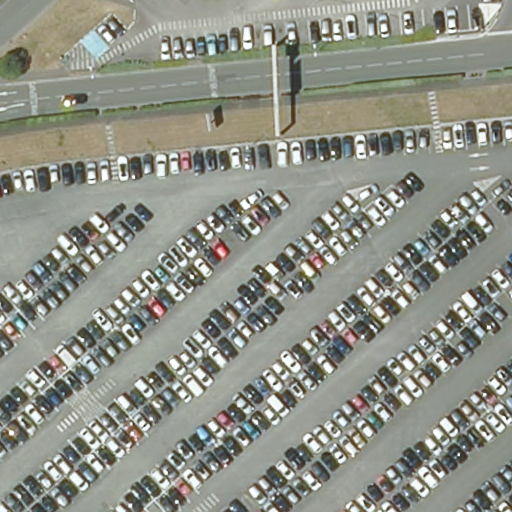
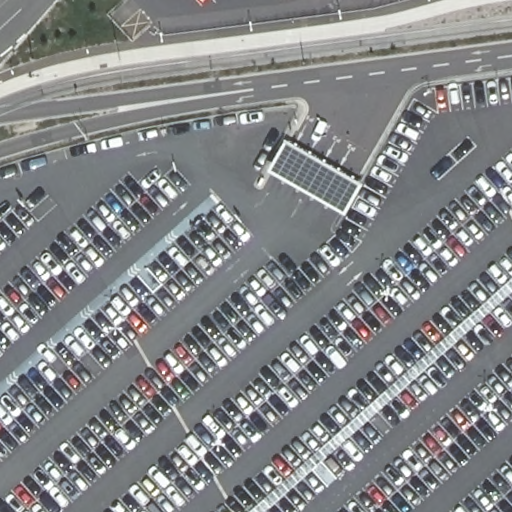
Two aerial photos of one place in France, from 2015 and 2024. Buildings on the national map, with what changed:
new [(346,214),(269,171),(286,140),(363,183),(346,214)]

